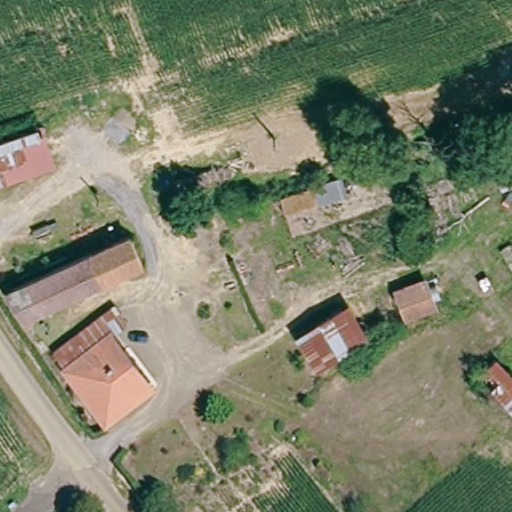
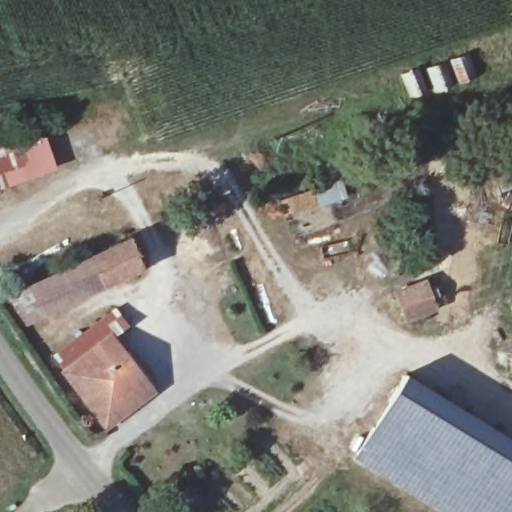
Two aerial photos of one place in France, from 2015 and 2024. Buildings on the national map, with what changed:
unchanged [(57,169),(0,187),(0,143),(42,129),(57,169)]
unchanged [(129,238),(144,269),(25,323),(2,295),(129,238)]
unchanged [(407,323),(393,290),(428,278),(439,313),(407,323)]
unchanged [(110,308),(129,327),(117,336),(160,389),(105,432),(49,354),(110,308)]
new [(512,438),(512,512),(447,512),(353,456),(405,372),(512,438)]

